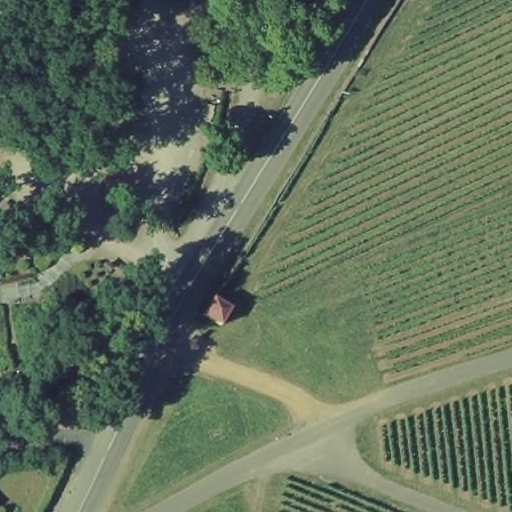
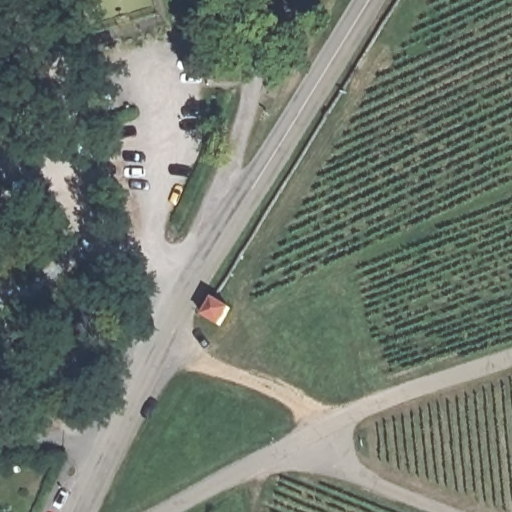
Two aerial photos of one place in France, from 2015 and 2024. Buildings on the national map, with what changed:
unchanged [(88,37),(97,67),(75,66),(71,51),(88,37)]
unchanged [(232,305),(221,330),(197,315),(211,297),(232,305)]

